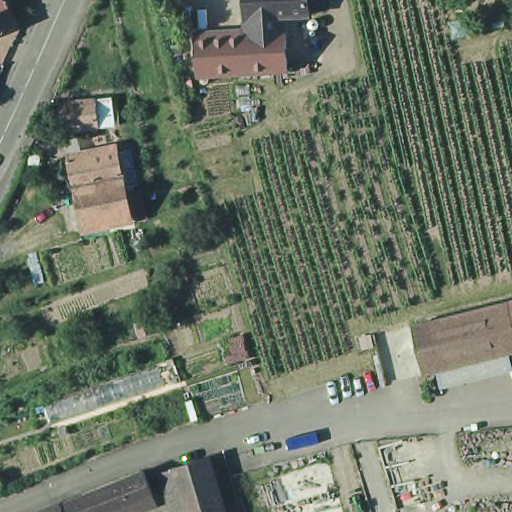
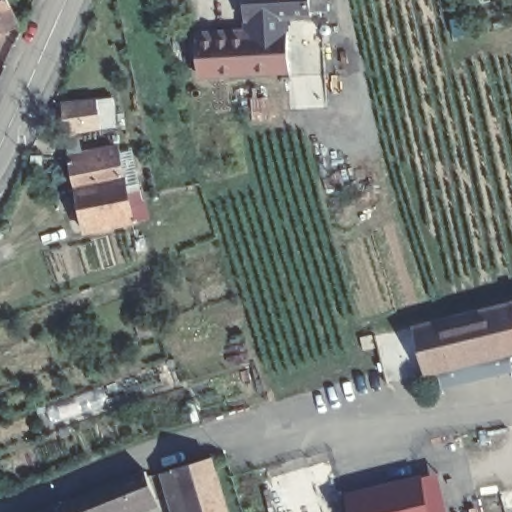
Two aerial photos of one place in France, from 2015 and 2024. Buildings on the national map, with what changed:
unchanged [(0,33),(0,0),(13,0),(23,22),(0,33)]
unchanged [(325,10),(308,10),(308,14),(286,16),(286,32),(246,34),(244,0),(325,0),(325,10)]
unchanged [(200,76),(198,37),(246,34),(286,32),(289,71),(200,76)]
unchanged [(118,97),(122,125),(118,126),(105,127),(72,133),(67,102),(102,100),(118,97)]
unchanged [(76,162),(123,152),(125,160),(130,186),(83,196),(77,170),(76,162)]
unchanged [(130,186),(137,221),(90,231),(83,196),(130,186)]
unchanged [(512,301),(512,312),(510,302),(512,301)]
unchanged [(512,312),(512,352),(426,372),(414,325),(510,302),(512,312)]
unchanged [(360,337),(372,334),(375,347),(363,348),(360,337)]
unchanged [(49,422),(41,402),(156,366),(165,386),(49,422)]
unchanged [(211,456),(228,512),(188,512),(173,467),(211,456)]
unchanged [(71,512),(67,502),(150,468),(162,495),(118,512),(71,512)]
new [(438,471),(448,512),(350,512),(345,493),(438,471)]
unchanged [(71,512),(41,512),(67,502),(71,512)]

